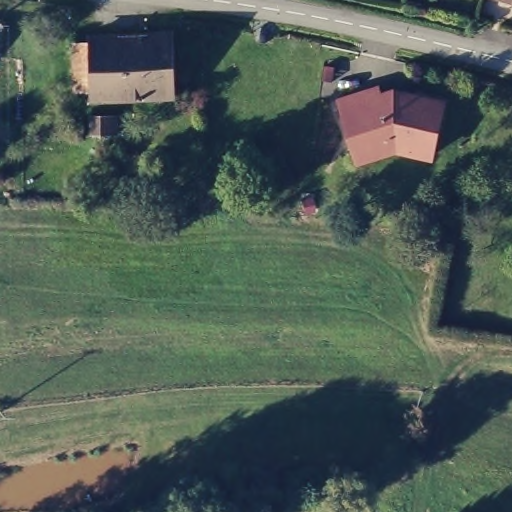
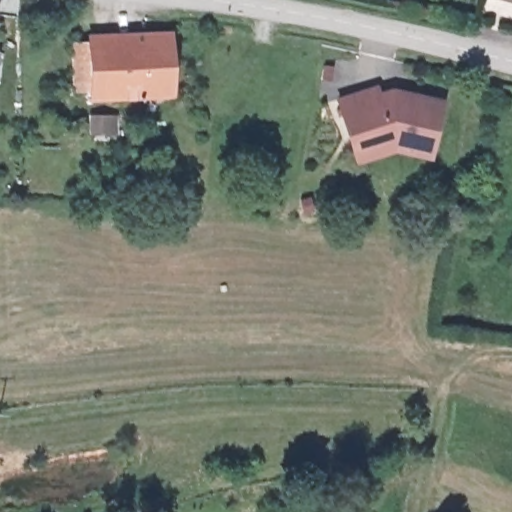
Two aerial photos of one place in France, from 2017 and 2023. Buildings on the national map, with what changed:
unchanged [(129,96),(99,95),(98,88),(78,87),(76,39),(95,37),(95,33),(172,29),(176,91),(129,96)]
unchanged [(340,97),(387,83),(446,98),(434,158),(399,149),(357,164),(340,97)]

